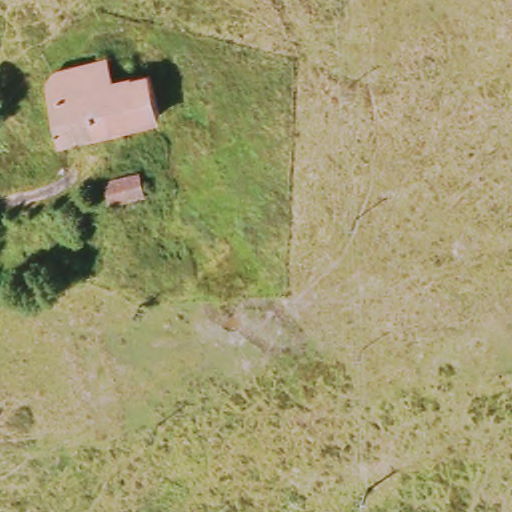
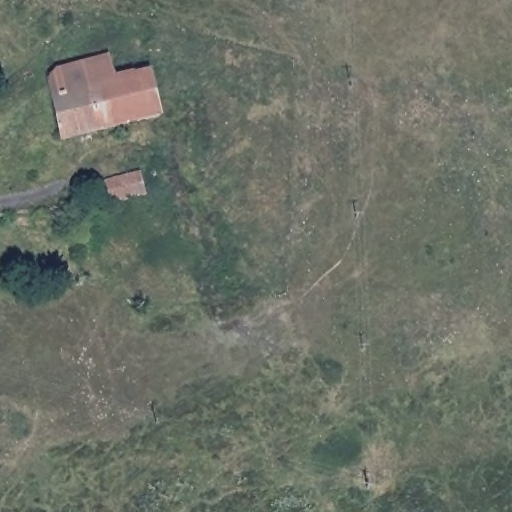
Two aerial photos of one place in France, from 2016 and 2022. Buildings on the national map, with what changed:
unchanged [(49,93),(47,84),(53,67),(110,56),(113,79),(49,93)]
unchanged [(148,74),(154,112),(58,139),(49,93),(113,79),(148,74)]
unchanged [(140,176),(143,198),(107,205),(106,182),(140,176)]

